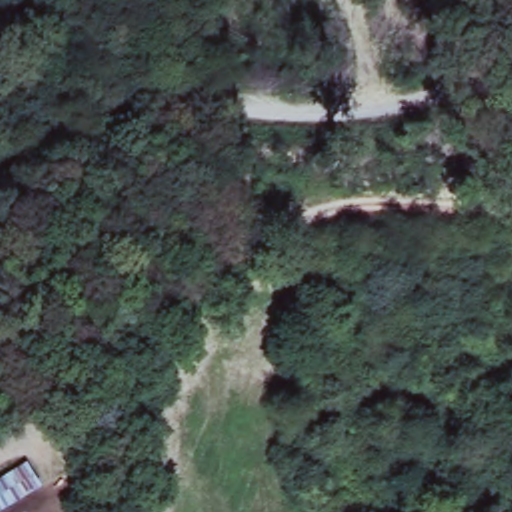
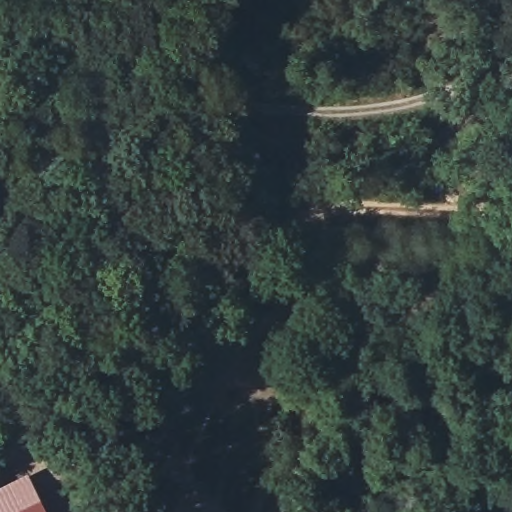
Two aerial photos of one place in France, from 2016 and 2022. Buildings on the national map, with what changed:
demolished [(0,512),(0,481),(22,467),(39,491),(6,512),(0,512)]
new [(47,512),(0,512),(0,485),(27,472),(47,512)]

